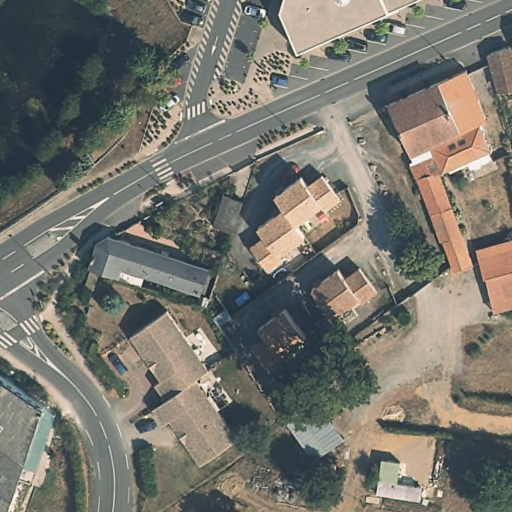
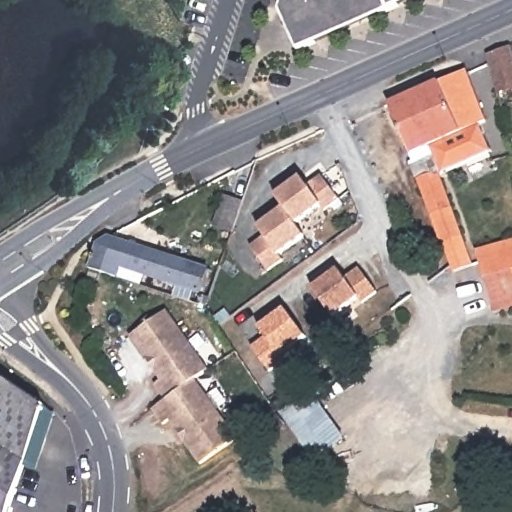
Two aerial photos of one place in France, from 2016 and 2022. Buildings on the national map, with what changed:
unchanged [(299,53),(279,12),(283,0),(418,0),(299,53)]
unchanged [(509,46),(512,58),(512,91),(497,90),(488,55),(509,46)]
unchanged [(452,269),(447,255),(442,242),(424,195),(411,163),(415,161),(412,154),(411,155),(389,104),(466,70),(486,121),(480,123),(492,151),(442,173),(441,172),(439,173),(462,237),(474,263),(452,269)]
unchanged [(274,196),(300,177),(307,186),(321,176),(339,200),(324,211),(320,206),(295,224),(283,208),(274,196)]
unchanged [(214,226),(224,195),(243,201),(232,232),(214,226)]
unchanged [(304,236),(278,255),(282,260),(267,271),(249,247),(263,236),(257,227),(283,208),(295,224),(304,236)]
unchanged [(205,288),(200,286),(199,288),(138,267),(134,278),(89,264),(97,239),(108,232),(207,264),(207,265),(212,267),(205,288)]
unchanged [(478,256),(512,247),(512,306),(494,309),(478,256)]
unchanged [(344,264),(350,272),(362,263),(381,286),(365,299),(362,295),(338,313),(317,285),(344,264)]
unchanged [(209,293),(206,300),(199,298),(201,291),(209,293)]
unchanged [(132,335),(168,310),(209,370),(198,377),(195,380),(184,387),(166,399),(156,384),(162,380),(155,369),(147,358),(132,335)]
unchanged [(285,310),(306,338),(283,356),(286,360),(270,373),(251,349),(263,340),(257,332),(285,310)]
unchanged [(44,405),(52,418),(40,455),(34,471),(23,467),(9,512),(0,512),(0,375),(44,405)]
unchanged [(169,420),(163,424),(152,409),(166,399),(184,387),(195,380),(236,439),(199,464),(183,441),(176,430),(169,420)]
unchanged [(312,460),(279,414),(311,391),(343,438),(312,460)]

